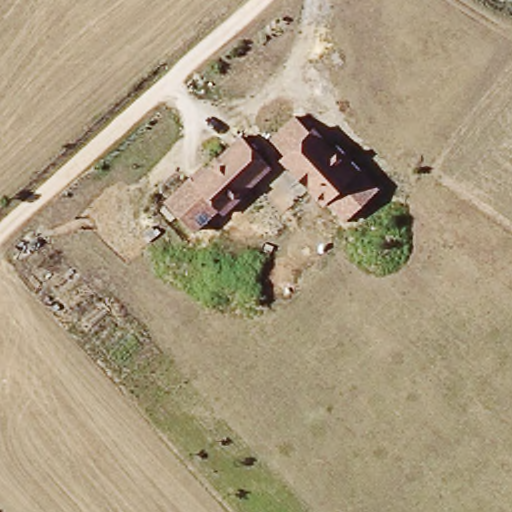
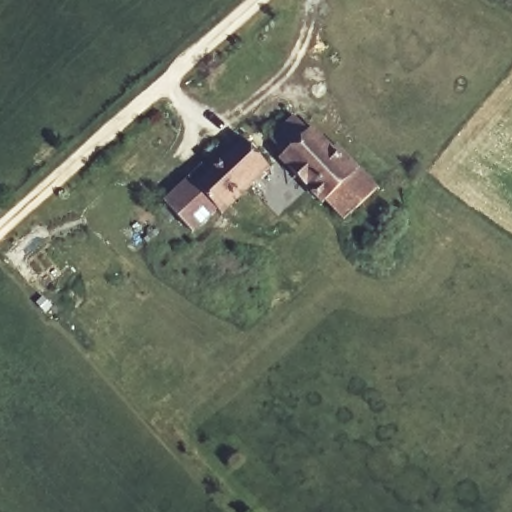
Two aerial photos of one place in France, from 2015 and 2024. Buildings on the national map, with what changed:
unchanged [(376,190),(346,219),(276,137),(298,113),(376,190)]
unchanged [(220,209),(217,204),(190,228),(160,198),(187,174),(190,177),(240,132),(270,163),(248,184),(220,209)]

